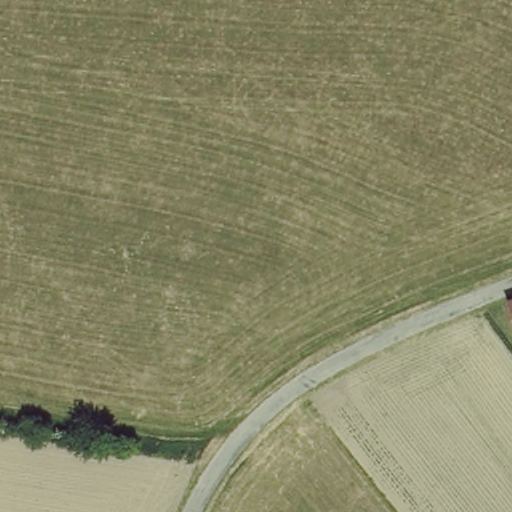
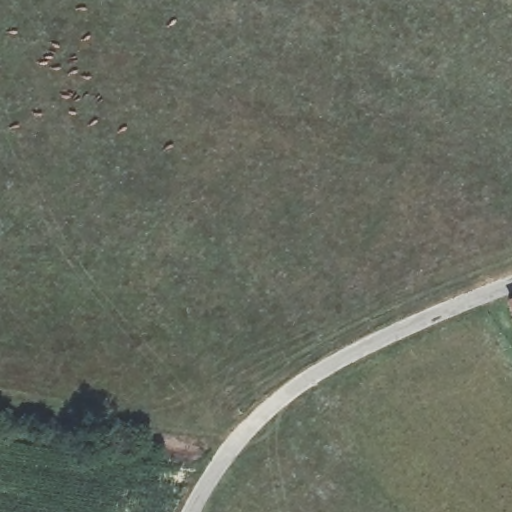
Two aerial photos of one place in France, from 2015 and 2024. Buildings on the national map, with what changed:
unchanged [(507,303),(512,302),(512,315),(507,303)]

